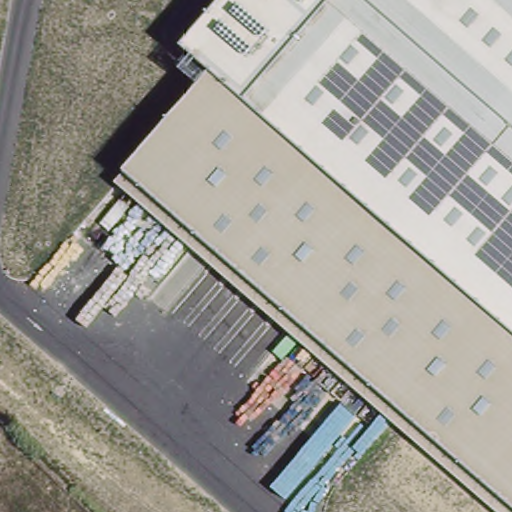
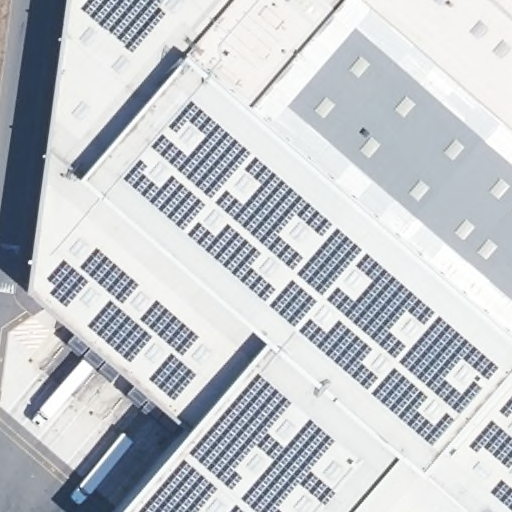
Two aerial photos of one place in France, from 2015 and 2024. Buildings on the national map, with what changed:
new [(214,73),(124,176),(512,509),(512,512),(113,512),(190,423),(28,286),(65,0),(230,0),(190,46),(214,73)]
unchanged [(190,46),(230,0),(512,0),(512,509),(124,176),(214,73),(190,46)]

